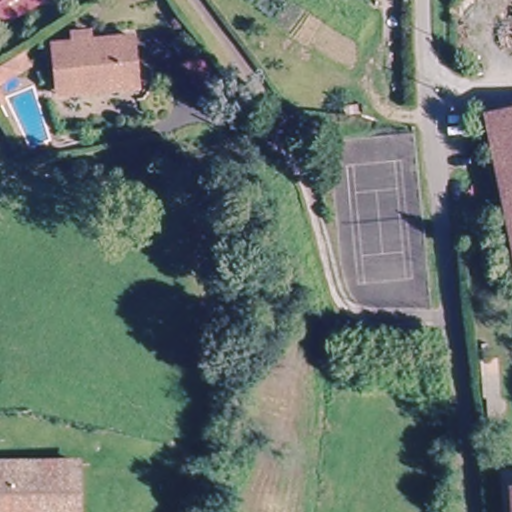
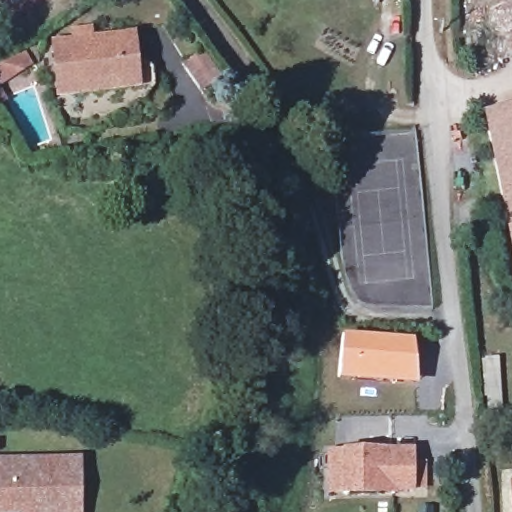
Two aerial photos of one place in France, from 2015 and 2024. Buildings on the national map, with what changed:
unchanged [(0,24),(0,0),(36,0),(0,24)]
unchanged [(112,89),(59,96),(52,45),(71,44),(69,30),(91,28),(91,30),(92,40),(131,35),(135,68),(136,86),(112,89)]
unchanged [(512,104),(512,260),(480,111),(512,104)]
new [(341,335),(415,341),(417,384),(339,378),(341,335)]
new [(498,357),(502,418),(486,419),(480,359),(498,357)]
new [(326,450),(341,450),(413,449),(415,496),(342,496),(341,494),(327,495),(326,450)]
unchanged [(80,462),(82,512),(0,512),(0,464),(80,462)]
unchanged [(512,512),(510,512),(510,488),(512,488),(512,512)]

